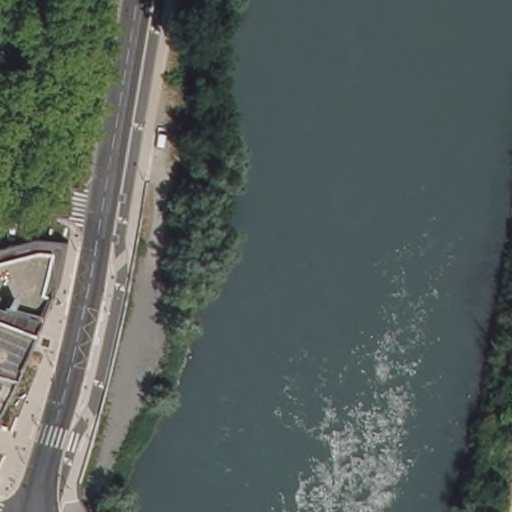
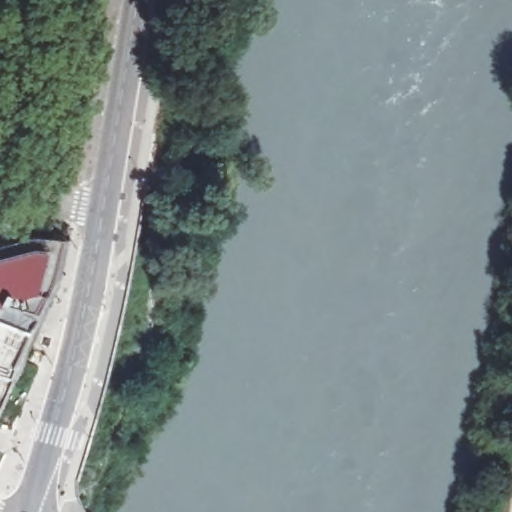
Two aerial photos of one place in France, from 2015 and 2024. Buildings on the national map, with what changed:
unchanged [(70,239),(39,312),(35,324),(0,314),(0,244),(35,234),(70,239)]
unchanged [(2,373),(0,372),(0,314),(35,324),(47,327),(25,379),(24,379),(12,404),(12,406),(10,409),(10,411),(9,414),(8,415),(7,419),(8,420),(7,424),(0,422),(0,396),(9,375),(2,373)]

